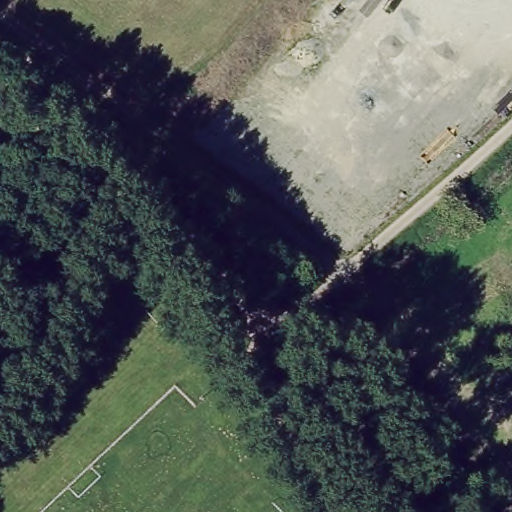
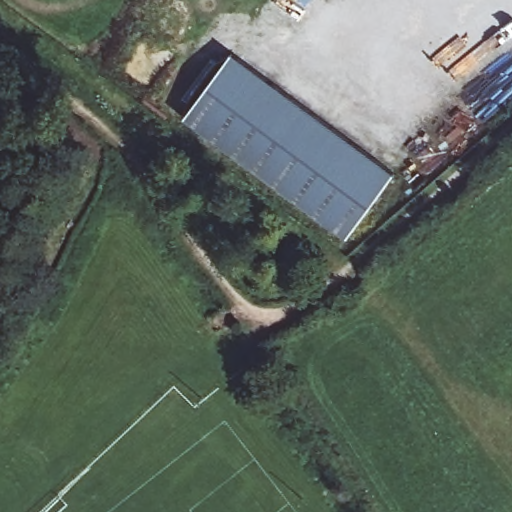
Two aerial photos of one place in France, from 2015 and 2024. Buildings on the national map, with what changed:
new [(232,48),(393,171),(345,234),(183,111),(232,48)]

